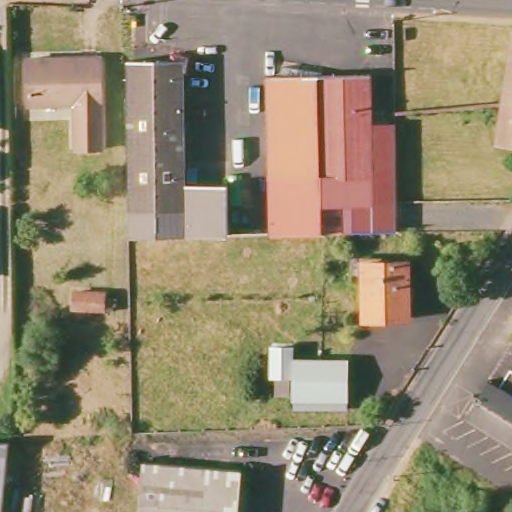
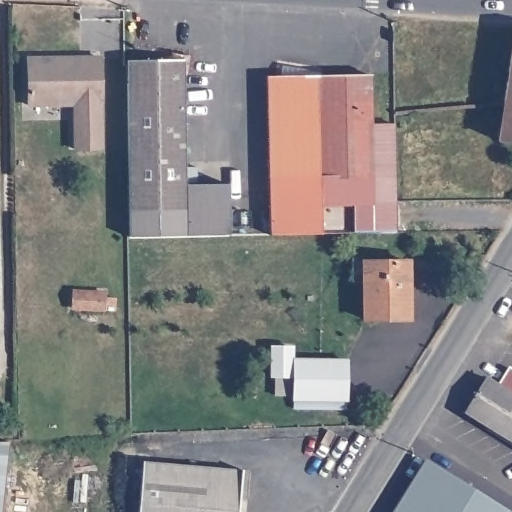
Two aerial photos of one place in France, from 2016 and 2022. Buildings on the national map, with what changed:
unchanged [(495,146),(512,27),(512,149),(495,146)]
unchanged [(102,177),(72,178),(68,109),(26,110),(28,59),(101,57),(102,177)]
unchanged [(121,68),(167,67),(170,57),(188,62),(183,80),(181,78),(183,190),(226,188),(228,239),(127,244),(125,182),(121,68)]
unchanged [(268,237),(264,78),(278,77),(280,68),(316,73),(316,76),(363,75),(367,176),(319,178),(321,235),(268,237)]
unchanged [(367,176),(393,175),(396,232),(321,235),(319,178),(367,176)]
unchanged [(405,320),(363,321),(360,266),(403,263),(405,320)]
unchanged [(111,313),(81,315),(81,299),(111,298),(111,313)]
unchanged [(295,372),(275,373),(275,348),(293,347),(295,372)]
unchanged [(347,358),(349,397),(299,398),(298,358),(347,358)]
unchanged [(497,387),(508,369),(512,371),(512,447),(462,417),(485,380),(497,387)]
unchanged [(291,395),(279,395),(279,376),(291,376),(291,395)]
unchanged [(3,512),(0,512),(0,445),(10,445),(3,512)]
unchanged [(243,473),(240,512),(138,512),(144,463),(243,473)]
new [(497,512),(399,512),(425,468),(497,512)]

